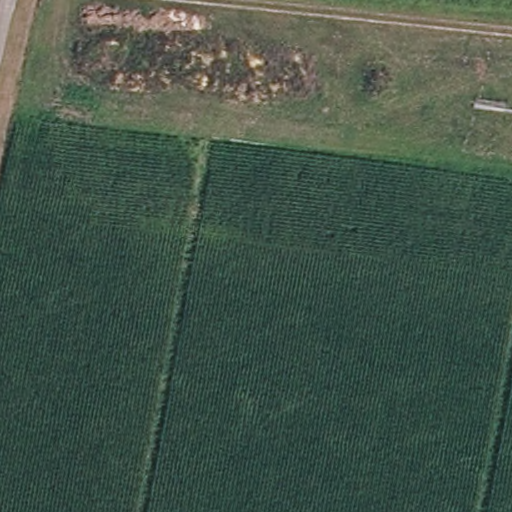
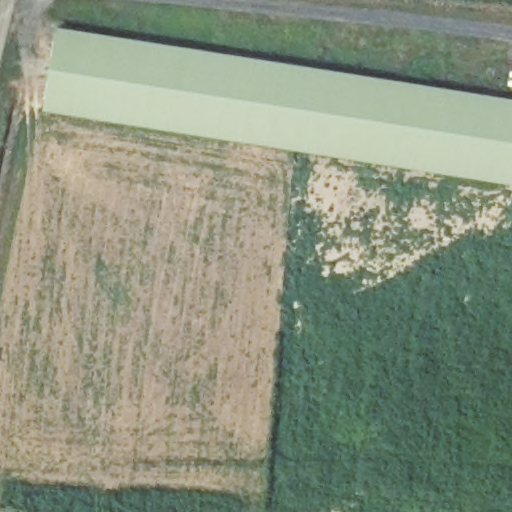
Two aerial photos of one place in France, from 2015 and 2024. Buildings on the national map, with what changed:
new [(56,27),(512,100),(512,184),(43,111),(56,27)]

